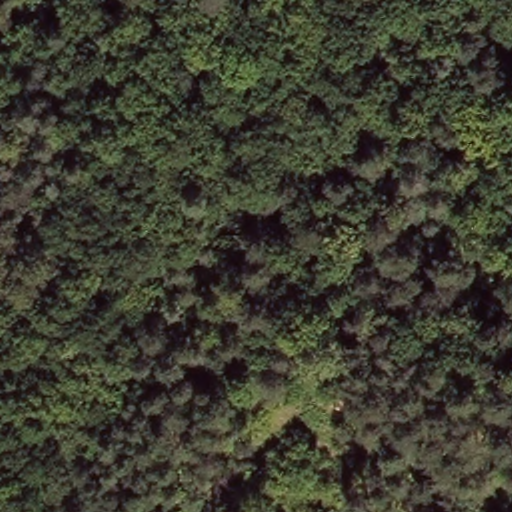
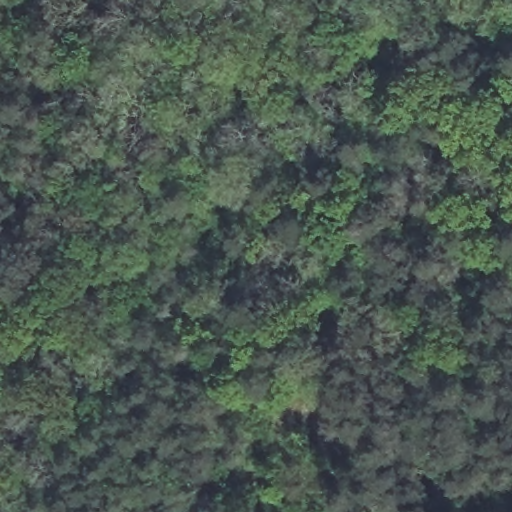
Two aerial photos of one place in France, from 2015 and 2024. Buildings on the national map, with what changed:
unchanged [(343,419),(325,410),(335,387),(354,396),(343,419)]

